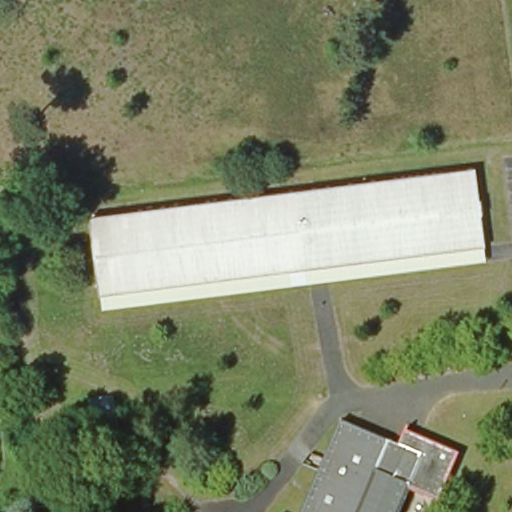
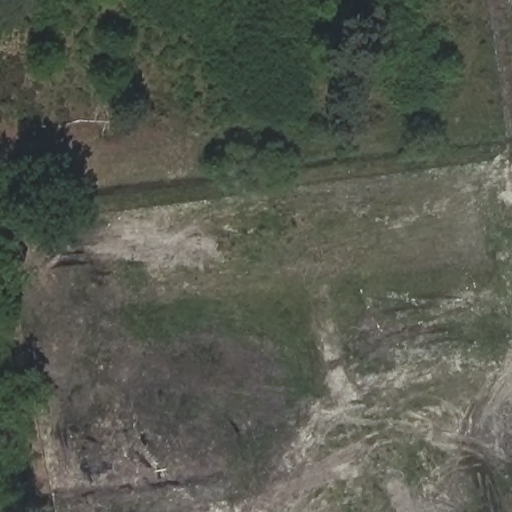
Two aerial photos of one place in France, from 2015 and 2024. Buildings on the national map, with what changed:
demolished [(488,258),(105,308),(91,208),(476,164),(488,258)]
unchanged [(116,430),(92,432),(89,407),(113,403),(116,430)]
demolished [(423,458),(411,487),(414,488),(405,512),(306,512),(336,437),(340,427),(344,428),(393,447),(423,458)]

